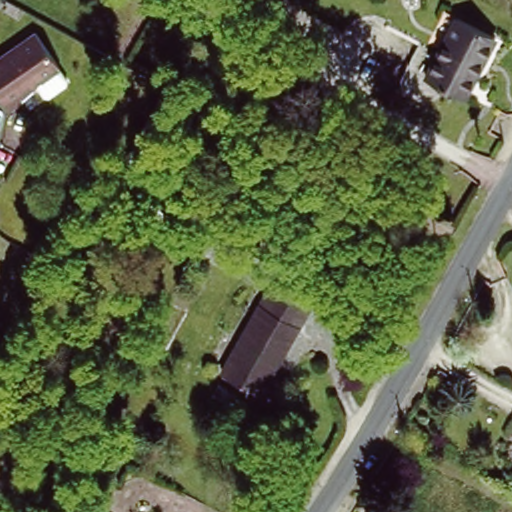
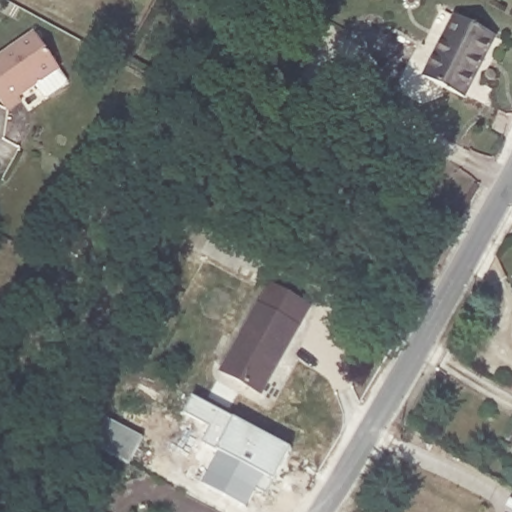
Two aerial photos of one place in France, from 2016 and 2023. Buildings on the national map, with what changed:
unchanged [(432,42),(449,11),(501,39),(471,95),(434,75),(419,67),(432,42)]
unchanged [(0,102),(0,58),(37,33),(60,69),(19,97),(21,101),(6,111),(0,102)]
unchanged [(275,282),(242,264),(250,249),(284,266),(275,282)]
unchanged [(230,373),(276,292),(309,311),(263,392),(230,373)]
new [(203,484),(220,452),(202,442),(210,427),(185,413),(194,396),(292,449),(275,482),(272,480),(265,494),(257,489),(247,507),(203,484)]
new [(108,418),(143,437),(129,464),(94,445),(108,418)]

